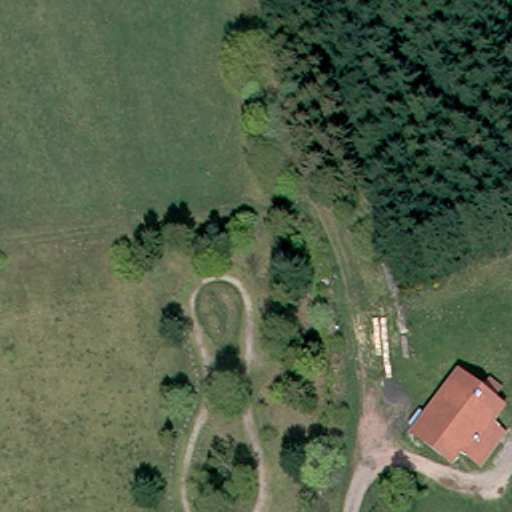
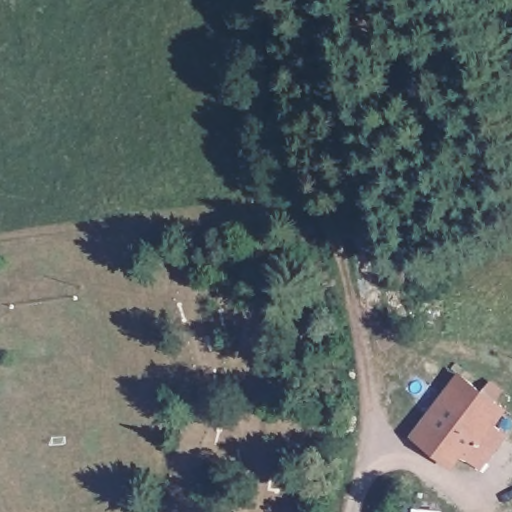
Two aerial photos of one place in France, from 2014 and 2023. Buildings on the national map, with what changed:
unchanged [(486,397),(493,388),(503,396),(495,405),(506,414),(482,444),(495,455),(482,472),(462,457),(452,469),(416,440),(464,379),(486,397)]

